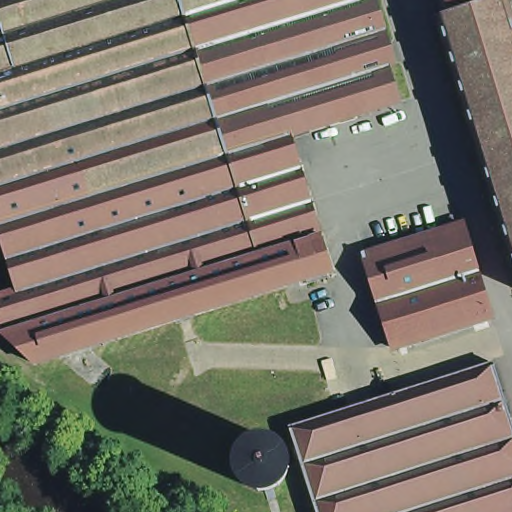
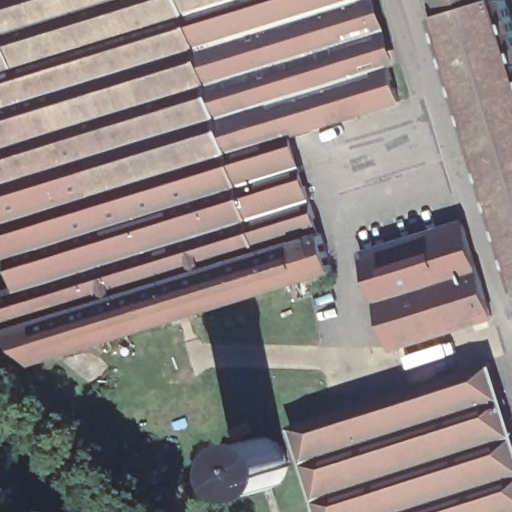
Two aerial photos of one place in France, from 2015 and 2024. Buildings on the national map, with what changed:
unchanged [(14,292),(0,247),(0,0),(366,0),(399,107),(291,139),(332,274),(48,360),(53,363),(35,369),(4,340),(0,328),(0,296),(14,292)]
unchanged [(439,0),(489,0),(492,9),(499,7),(512,48),(512,286),(431,28),(438,26),(431,3),(439,0)]
unchanged [(463,225),(492,319),(393,352),(361,257),(463,225)]
unchanged [(286,428),(491,363),(512,433),(512,512),(314,512),(286,428)]

